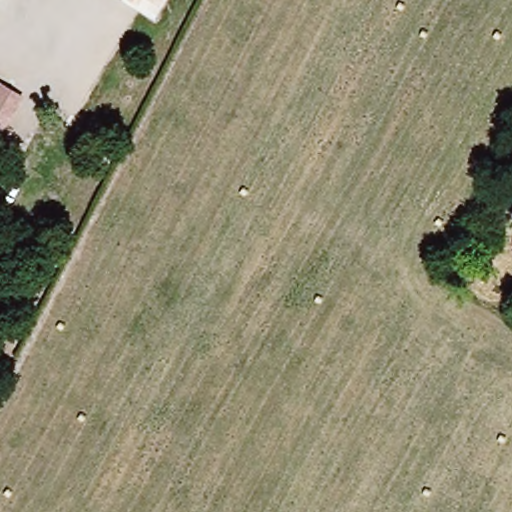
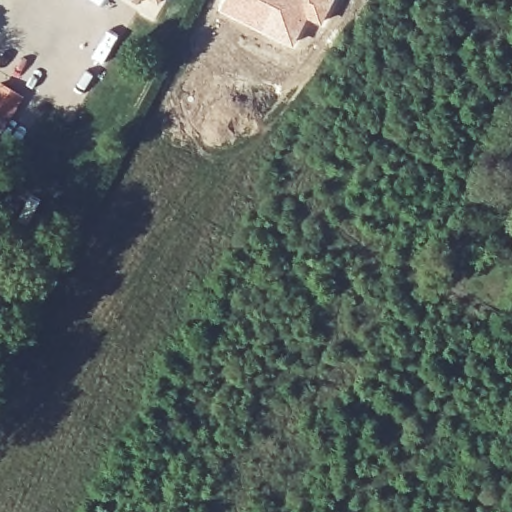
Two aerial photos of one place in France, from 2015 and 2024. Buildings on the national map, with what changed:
unchanged [(158,7),(146,0),(162,0),(158,7)]
new [(224,0),(334,0),(320,26),(307,20),(292,48),(218,12),(224,0)]
new [(0,135),(0,80),(24,95),(0,135)]

